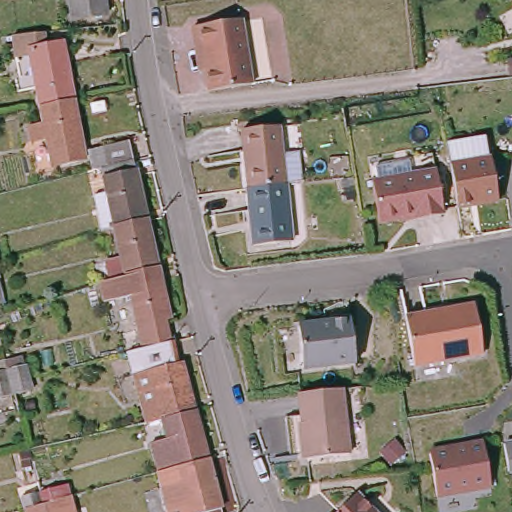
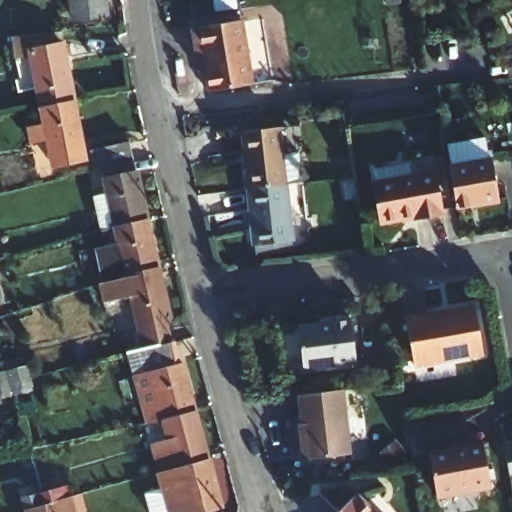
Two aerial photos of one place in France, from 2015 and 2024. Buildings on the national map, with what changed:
unchanged [(100,8),(68,12),(67,0),(99,0),(100,8)]
unchanged [(232,15),(244,79),(202,87),(192,38),(186,39),(183,25),(232,15)]
unchanged [(39,44),(56,41),(68,99),(37,105),(24,47),(10,50),(6,35),(36,31),(39,44)]
unchanged [(68,99),(80,157),(48,163),(43,136),(24,139),(22,124),(40,121),(37,105),(68,99)]
unchanged [(243,126),(281,122),(287,179),(270,181),(250,184),(243,126)]
unchanged [(102,142),(129,135),(133,152),(106,159),(102,142)]
unchanged [(454,147),(468,145),(471,159),(497,155),(505,198),(488,201),(488,200),(464,204),(457,162),(454,147)]
unchanged [(132,155),(147,215),(115,223),(100,163),(132,155)]
unchanged [(377,180),(375,168),(410,162),(412,174),(437,170),(445,214),(415,219),(414,216),(380,222),(372,181),(377,180)]
unchanged [(294,236),(256,240),(250,184),(270,181),(287,179),(294,236)]
unchanged [(147,215),(157,263),(133,269),(110,275),(105,259),(122,254),(115,223),(147,215)]
unchanged [(168,312),(162,313),(169,337),(142,343),(137,317),(132,292),(105,297),(100,279),(100,278),(110,275),(133,269),(157,263),(168,312)]
unchanged [(479,294),(487,344),(418,356),(410,306),(479,294)]
unchanged [(315,324),(317,321),(345,318),(350,360),(297,367),(292,327),(315,324)]
unchanged [(169,337),(175,358),(182,357),(195,405),(164,413),(146,417),(127,347),(142,343),(169,337)]
unchanged [(13,394),(0,399),(0,371),(7,369),(22,364),(27,377),(30,389),(13,394)]
unchanged [(298,391),(341,386),(348,451),(305,456),(298,391)]
unchanged [(208,453),(177,462),(162,466),(158,467),(150,438),(170,434),(164,413),(195,405),(208,453)]
unchanged [(509,437),(512,436),(512,456),(508,437),(509,437)]
unchanged [(491,483),(437,493),(429,451),(467,444),(466,442),(483,438),(491,483)]
unchanged [(190,510),(182,512),(169,512),(167,505),(160,482),(156,467),(158,467),(162,466),(177,462),(208,453),(222,501),(190,510)]
unchanged [(40,488),(65,482),(70,495),(74,512),(29,512),(28,506),(25,492),(40,488)]
unchanged [(377,512),(333,512),(355,490),(377,512)]

